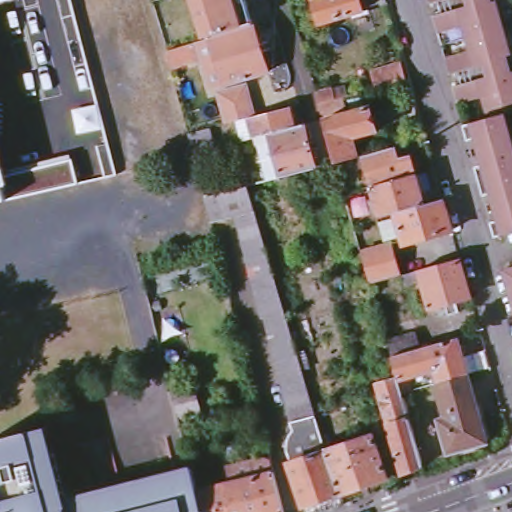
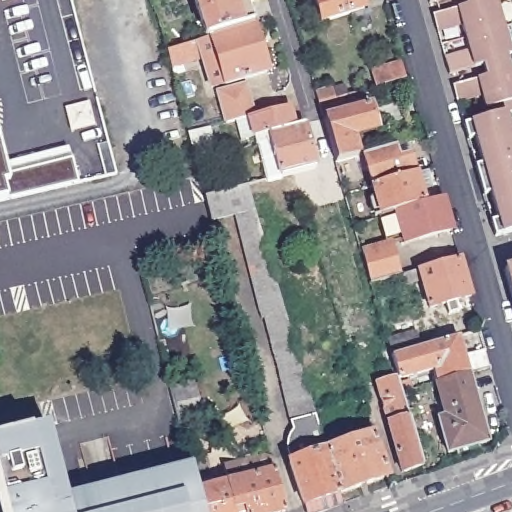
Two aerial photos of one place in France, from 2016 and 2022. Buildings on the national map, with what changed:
unchanged [(23,0),(0,5),(0,0),(23,0)]
unchanged [(244,0),(251,22),(217,31),(204,35),(194,0),(244,0)]
unchanged [(317,0),(368,0),(371,10),(324,24),(317,0)]
unchanged [(431,0),(441,0),(432,2),(431,0)]
unchanged [(508,51),(512,65),(512,110),(508,111),(512,128),(512,231),(497,235),(493,220),(500,218),(493,191),(485,193),(477,164),(484,162),(476,135),(470,137),(465,122),(491,115),(485,94),(459,100),(456,90),(455,85),(480,77),(476,65),(451,71),(447,56),(471,50),(463,20),(438,26),(435,13),(459,6),(457,0),(499,0),(512,46),(512,50),(508,51)]
unchanged [(217,31),(251,22),(264,70),(217,83),(205,86),(197,56),(167,63),(162,45),(193,37),(204,35),(217,31)]
unchanged [(397,63),(402,79),(374,86),(370,71),(397,63)]
unchanged [(248,135),(237,139),(232,120),(222,123),(217,103),(214,91),(247,82),(250,95),(255,114),(287,105),(293,123),(266,130),(249,135),(248,135)]
unchanged [(312,95),(328,90),(330,99),(335,114),(318,118),(315,103),(312,95)]
unchanged [(374,131),(347,140),(352,157),(331,163),(319,121),(367,107),(374,131)]
unchanged [(308,156),(310,164),(279,172),(260,177),(249,135),(266,130),(293,123),(298,122),(308,156)]
unchanged [(215,151),(195,156),(190,138),(209,133),(215,151)]
unchanged [(9,200),(0,203),(0,141),(10,177),(74,160),(80,185),(14,200),(9,200)]
unchanged [(392,146),(396,159),(409,156),(413,172),(367,185),(359,155),(392,146)]
unchanged [(372,199),(367,185),(413,172),(422,202),(391,211),(371,216),(366,200),(372,199)]
unchanged [(290,445),(290,443),(292,440),(294,438),(298,435),(264,317),(261,318),(231,217),(212,222),(206,199),(252,186),(321,428),(327,447),(328,450),(342,495),(305,506),(301,490),(292,462),(294,461),(289,450),(289,448),(289,447),(290,445)]
unchanged [(391,211),(422,202),(440,197),(449,230),(400,244),(391,211)]
unchanged [(400,275),(371,283),(362,251),(392,244),(400,275)]
unchanged [(423,277),(408,281),(406,273),(462,257),(473,296),(458,300),(461,311),(451,314),(448,303),(432,308),(423,277)]
unchanged [(512,271),(512,293),(507,273),(512,271)]
unchanged [(435,371),(399,381),(399,378),(392,357),(388,341),(417,332),(422,348),(460,338),(471,374),(439,383),(435,371)]
unchanged [(452,455),(441,418),(448,415),(439,383),(471,374),(492,442),(452,455)]
unchanged [(378,384),(399,378),(399,381),(403,394),(424,467),(404,473),(378,384)]
unchanged [(197,383),(206,417),(181,423),(174,389),(197,383)]
unchanged [(45,429),(51,454),(0,466),(0,440),(45,429)]
unchanged [(390,478),(342,495),(328,450),(377,435),(390,478)]
unchanged [(51,454),(62,501),(189,470),(190,473),(194,491),(199,512),(0,512),(0,466),(51,454)]
unchanged [(239,511),(235,512),(199,512),(194,491),(272,472),(282,512),(239,512),(239,511)]

